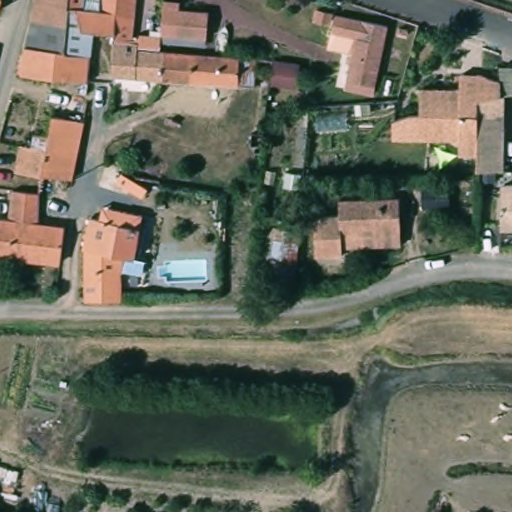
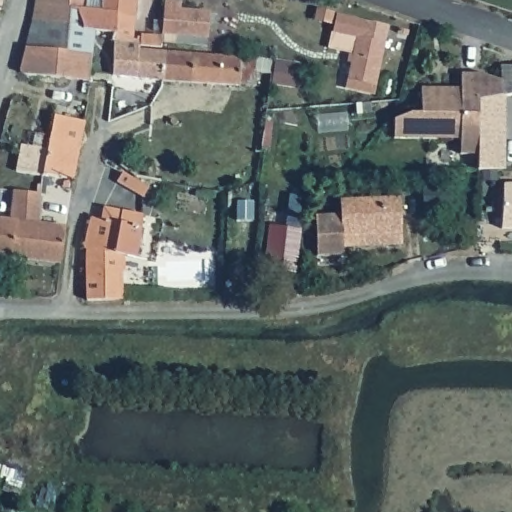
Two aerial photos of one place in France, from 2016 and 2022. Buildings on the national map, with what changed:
unchanged [(0,9),(0,8),(0,0),(3,0),(0,9)]
unchanged [(75,19),(76,0),(93,0),(92,16),(105,17),(106,0),(142,0),(141,25),(124,24),(123,37),(99,39),(96,63),(93,90),(29,82),(25,77),(31,53),(71,59),(75,19)]
unchanged [(42,0),(76,0),(75,19),(71,59),(31,53),(39,25),(42,0)]
unchanged [(212,13),(210,38),(180,36),(181,11),(212,13)]
unchanged [(346,92),(348,83),(356,42),(332,37),(335,19),(387,30),(374,88),(373,98),(346,92)]
unchanged [(128,47),(146,48),(146,55),(169,57),(172,57),(167,88),(123,83),(126,47),(128,47)]
unchanged [(277,67),(277,81),(263,81),(261,92),(183,89),(167,88),(172,57),(277,67)]
unchanged [(395,115),(412,107),(423,107),(422,83),(463,83),(462,69),(501,70),(499,90),(510,90),(506,171),(478,171),(477,152),(462,152),(460,135),(394,135),(395,115)]
unchanged [(49,150),(54,117),(85,122),(74,182),(45,177),(21,173),(24,146),(49,150)]
unchanged [(129,168),(149,183),(143,192),(124,178),(129,168)]
unchanged [(501,228),(503,183),(512,183),(512,228),(501,228)]
unchanged [(19,192),(43,194),(39,224),(66,227),(61,263),(0,256),(0,220),(12,222),(16,191),(19,192)]
unchanged [(317,212),(342,214),(342,198),(398,193),(401,241),(345,241),(343,251),(314,250),(317,212)]
unchanged [(81,257),(94,230),(127,234),(129,224),(144,232),(138,270),(126,268),(124,311),(88,311),(85,257),(81,257)]
unchanged [(268,224),(301,225),(295,277),(264,275),(268,224)]

